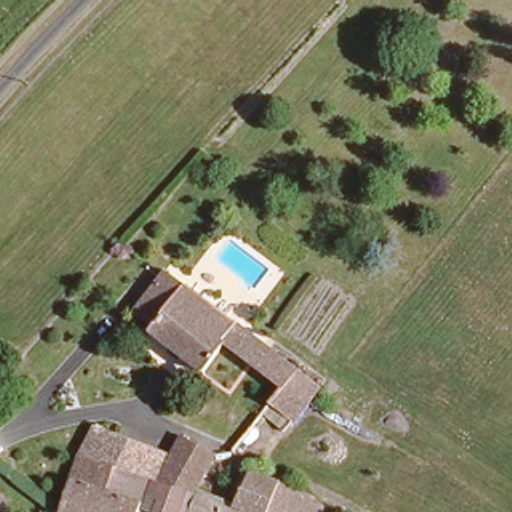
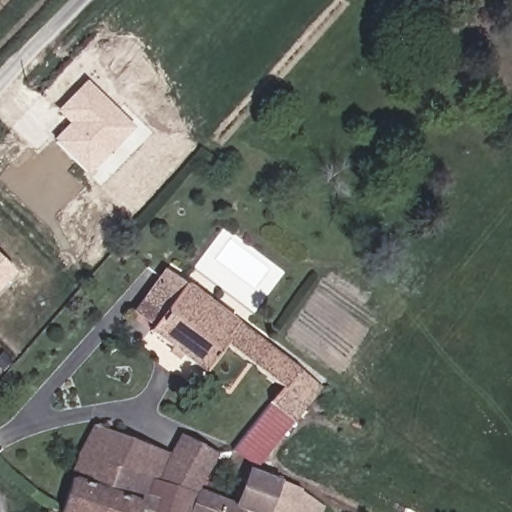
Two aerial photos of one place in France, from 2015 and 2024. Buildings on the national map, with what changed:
new [(57,111),(86,80),(135,127),(88,174),(53,140),(69,123),(57,111)]
new [(0,288),(0,260),(14,273),(0,288)]
unchanged [(183,277),(149,315),(134,303),(167,263),(183,277)]
unchanged [(185,274),(192,281),(318,382),(295,410),(288,418),(263,397),(277,381),(223,334),(197,362),(146,320),(149,315),(183,277),(185,274)]
unchanged [(79,443),(93,419),(129,433),(119,459),(79,443)]
unchanged [(129,433),(167,447),(180,430),(213,449),(191,481),(188,486),(151,471),(119,459),(129,433)]
unchanged [(79,443),(119,459),(151,471),(138,501),(133,512),(75,512),(53,503),(79,443)]
unchanged [(264,512),(257,512),(240,505),(231,501),(232,500),(234,495),(248,468),(278,481),(264,512)]
unchanged [(191,481),(234,495),(232,500),(231,501),(240,505),(237,512),(167,512),(138,501),(151,471),(188,486),(191,481)]
unchanged [(305,493),(318,502),(321,504),(318,512),(264,512),(278,481),(292,486),(305,493)]
unchanged [(53,503),(49,512),(36,512),(42,498),(53,503)]

